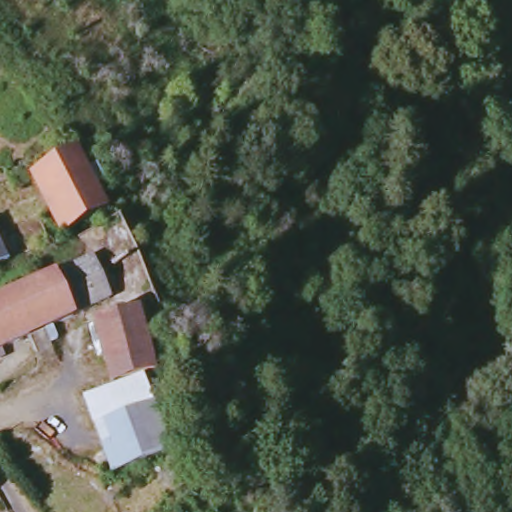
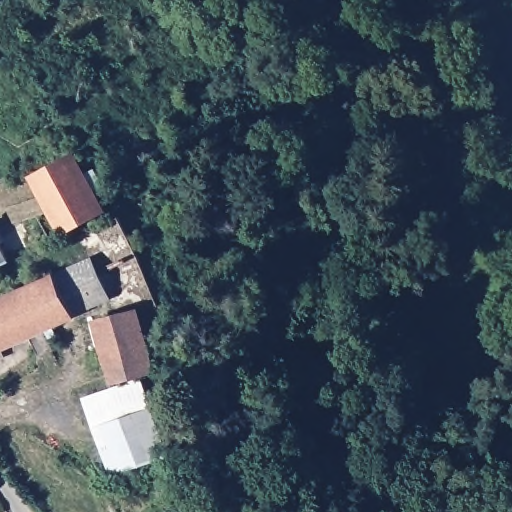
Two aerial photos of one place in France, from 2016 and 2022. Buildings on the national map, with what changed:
unchanged [(92,179),(102,173),(112,189),(100,195),(109,214),(66,237),(36,182),(81,157),(92,179)]
unchanged [(0,268),(0,228),(14,263),(0,268)]
unchanged [(97,257),(116,299),(78,315),(59,274),(97,257)]
unchanged [(78,315),(78,317),(0,352),(0,301),(59,274),(78,315)]
unchanged [(145,315),(160,376),(116,387),(100,327),(145,315)]
unchanged [(147,384),(174,459),(118,479),(91,404),(147,384)]

